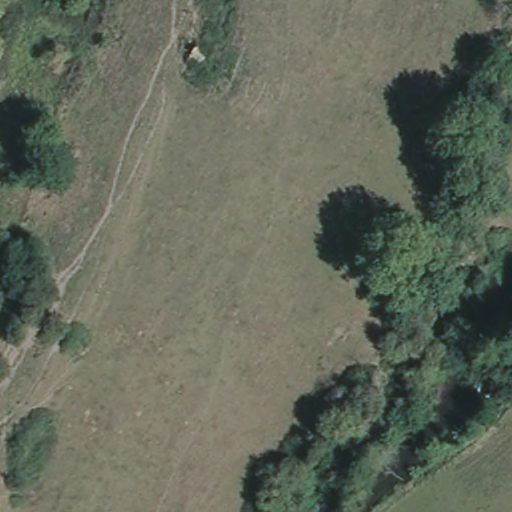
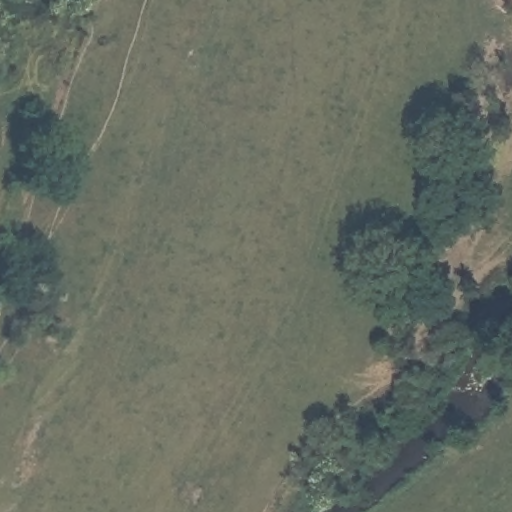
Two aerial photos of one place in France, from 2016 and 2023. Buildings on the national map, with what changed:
[]

